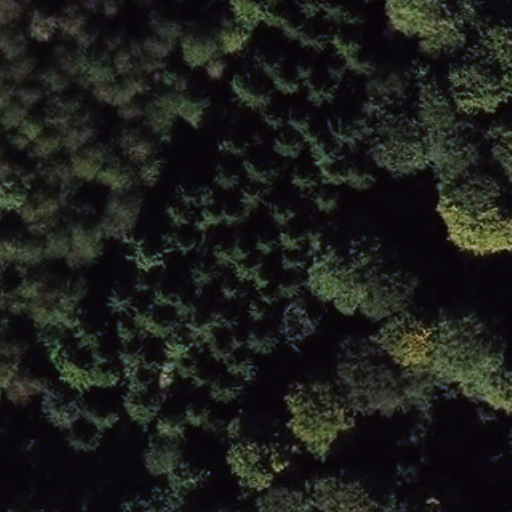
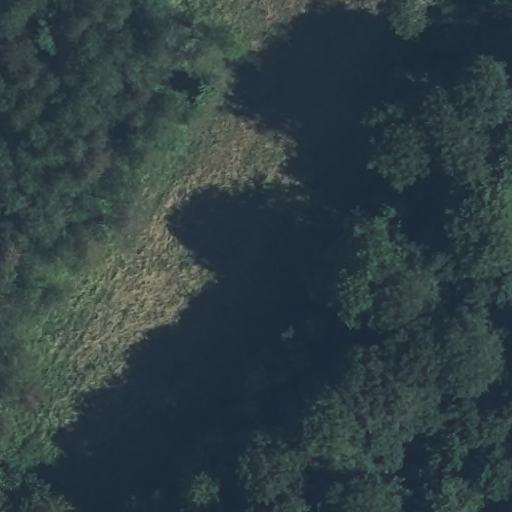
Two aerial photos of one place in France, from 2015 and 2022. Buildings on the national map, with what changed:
unchanged [(131,480),(115,504),(23,450),(38,424),(131,480)]

